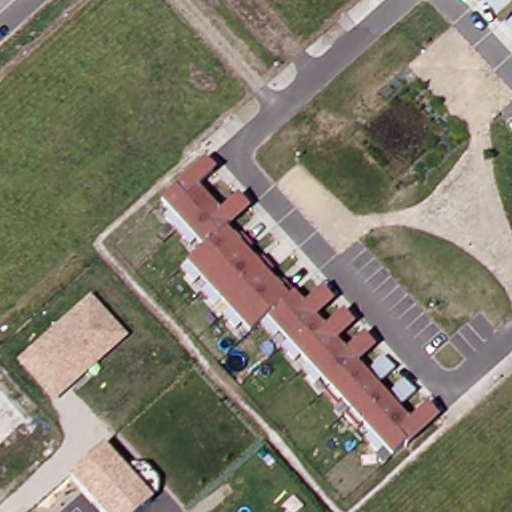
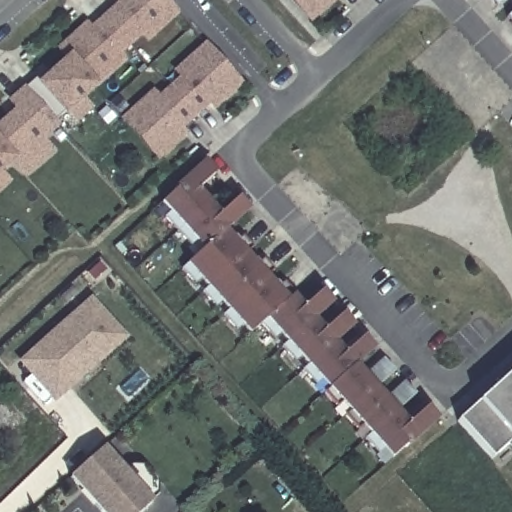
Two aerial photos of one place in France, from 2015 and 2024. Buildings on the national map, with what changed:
new [(147,42),(142,35),(121,54),(127,61),(97,86),(99,87),(85,99),(94,108),(76,123),(69,114),(65,117),(62,114),(54,120),(60,127),(46,139),(55,151),(25,178),(12,164),(4,171),(12,181),(0,192),(0,122),(13,110),(6,101),(23,86),(25,87),(31,82),(36,84),(65,59),(56,50),(86,22),(91,27),(116,4),(112,0),(167,0),(180,14),(147,42)]
unchanged [(287,0),(338,0),(310,25),(287,0)]
unchanged [(477,4),(482,0),(506,0),(488,16),(477,4)]
unchanged [(509,39),(498,27),(512,15),(512,37),(509,39)]
unchanged [(244,84),(214,111),(209,106),(183,129),(187,135),(157,161),(120,119),(152,89),(159,96),(177,79),(172,71),(205,42),(244,84)]
unchanged [(380,465),(366,450),(372,445),(365,436),(358,441),(345,426),(351,420),(343,411),(337,417),(323,402),(330,396),(322,387),(316,393),(302,377),(308,371),(301,363),(295,369),(281,353),(287,348),(280,339),(273,345),(252,321),(241,331),(227,315),(232,311),(225,302),(220,307),(206,291),(211,287),(204,278),(199,283),(185,267),(207,248),(201,241),(196,246),(169,215),(174,211),(166,201),(179,189),(178,188),(210,160),(221,172),(202,189),(224,213),(242,197),(253,209),(229,230),(239,241),(250,232),(260,244),(250,253),(259,265),(270,255),(281,267),(270,277),(280,288),(291,278),(301,291),(299,292),(310,304),(328,288),(339,300),(320,316),(330,327),(348,311),(360,323),(341,339),(350,351),(369,334),(380,346),(361,363),(371,374),(390,357),(400,369),(381,386),(391,397),(410,380),(420,392),(402,409),(412,422),(431,405),(442,417),(388,465),(385,461),(380,465)]
unchanged [(90,298),(128,340),(52,405),(17,363),(90,298)]
new [(511,440),(491,457),(457,422),(477,404),(512,373),(512,439),(511,440)]
unchanged [(121,466),(146,469),(157,484),(157,498),(153,503),(142,512),(98,512),(69,479),(102,449),(121,466)]

